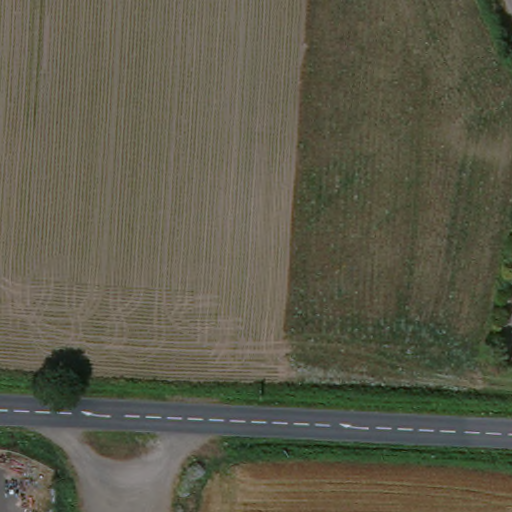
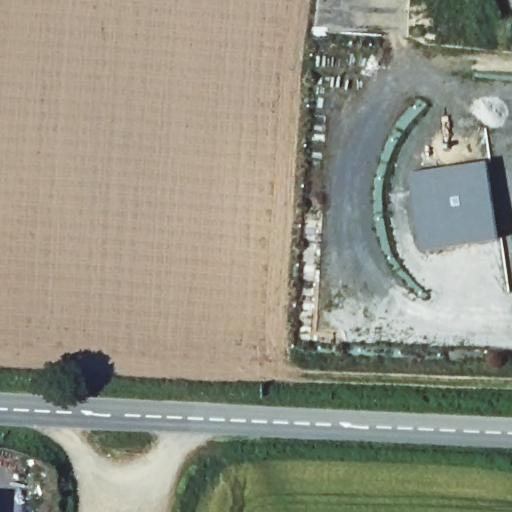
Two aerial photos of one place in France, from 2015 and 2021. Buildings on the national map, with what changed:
new [(499,239),(419,251),(409,175),(487,162),(499,239)]

